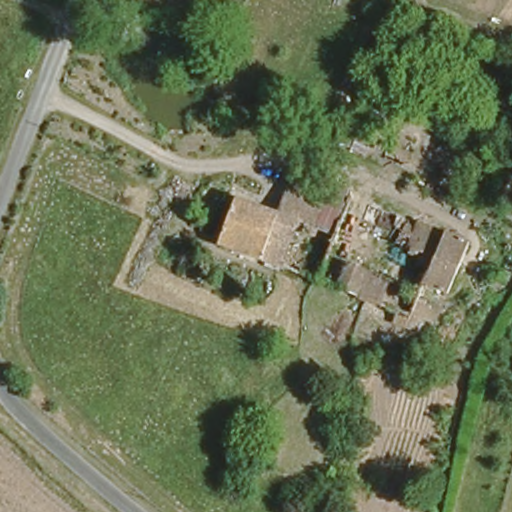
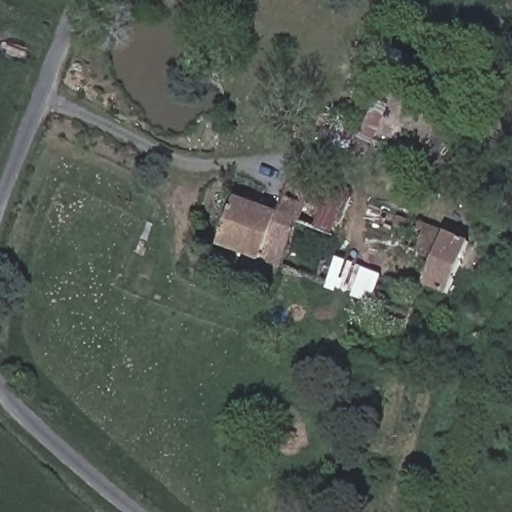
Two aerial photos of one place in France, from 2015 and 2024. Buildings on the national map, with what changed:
unchanged [(422,289),(405,323),(375,310),(378,303),(215,234),(235,192),(276,209),(296,165),(466,245),(441,297),(422,289)]

